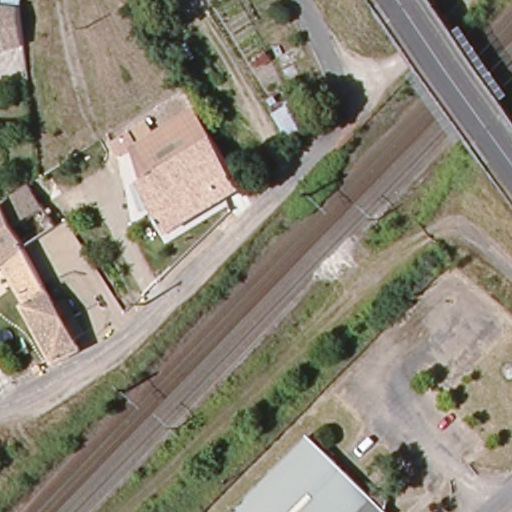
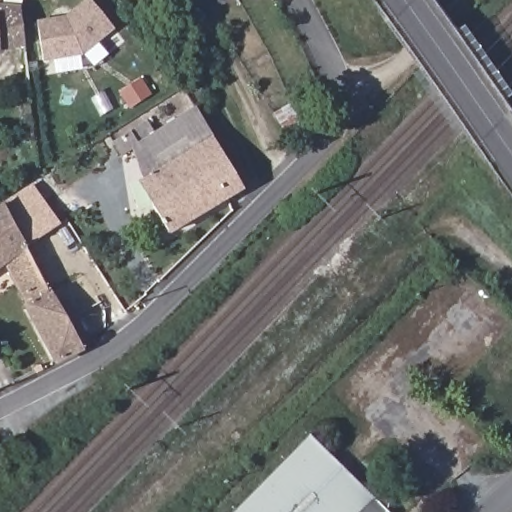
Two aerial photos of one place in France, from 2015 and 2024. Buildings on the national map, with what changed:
unchanged [(0,5),(0,0),(21,0),(20,7),(0,5)]
new [(37,21),(65,16),(85,0),(91,0),(115,29),(99,42),(110,55),(93,69),(82,56),(44,63),(37,21)]
unchanged [(10,13),(16,49),(0,52),(0,11),(10,13)]
unchanged [(167,230),(150,200),(130,146),(134,143),(130,135),(153,118),(160,127),(192,106),(240,185),(167,230)]
unchanged [(2,207),(30,191),(51,229),(39,235),(21,245),(2,207)]
unchanged [(42,287),(18,300),(1,267),(0,268),(0,209),(2,207),(21,245),(23,249),(42,287)]
unchanged [(29,344),(38,339),(18,300),(42,287),(56,312),(67,305),(77,322),(65,329),(76,353),(52,366),(44,370),(29,344)]
unchanged [(311,434),(375,495),(389,481),(393,507),(389,512),(233,512),(311,434)]

